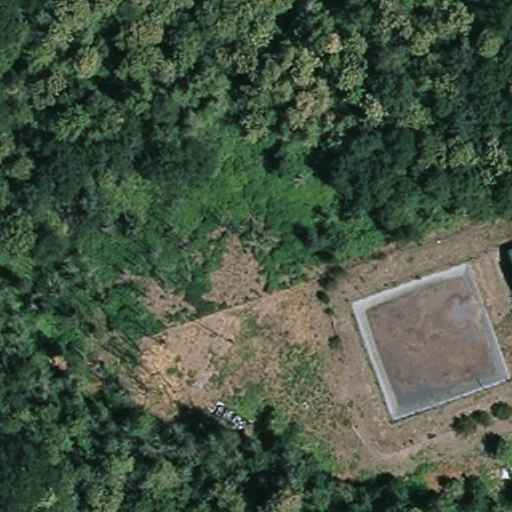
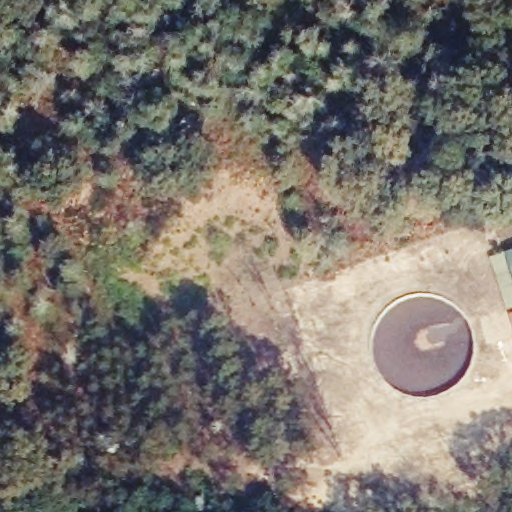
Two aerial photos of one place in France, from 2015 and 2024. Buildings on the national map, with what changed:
unchanged [(511,247),(512,247),(512,250),(511,247)]

